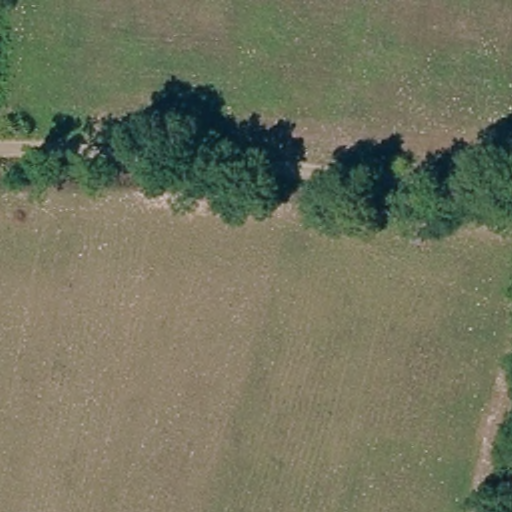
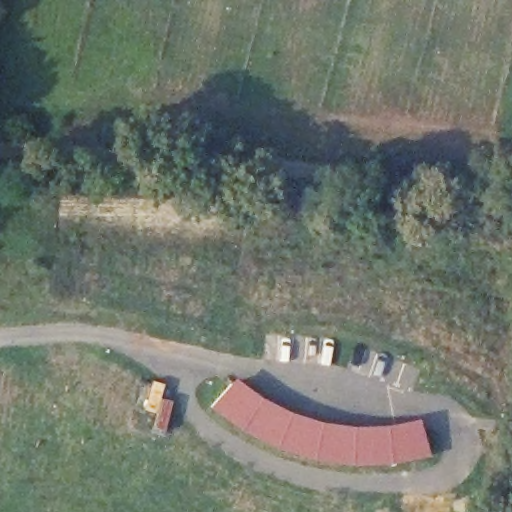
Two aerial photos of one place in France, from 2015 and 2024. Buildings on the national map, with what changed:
new [(261,397),(291,413),(321,421),(354,427),(388,426),(421,420),(430,457),(392,465),(352,464),(314,460),(275,448),(239,430),(211,407),(235,377),(261,397)]

